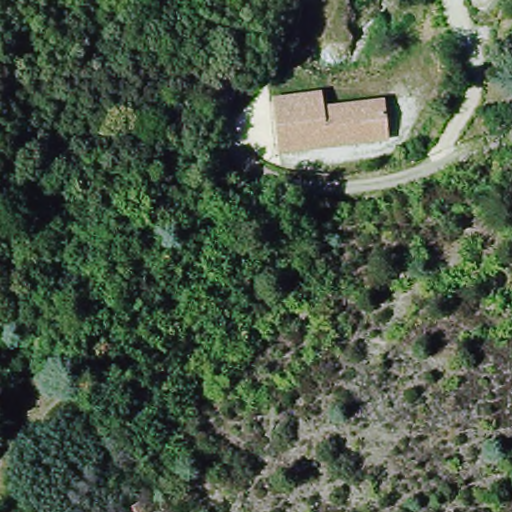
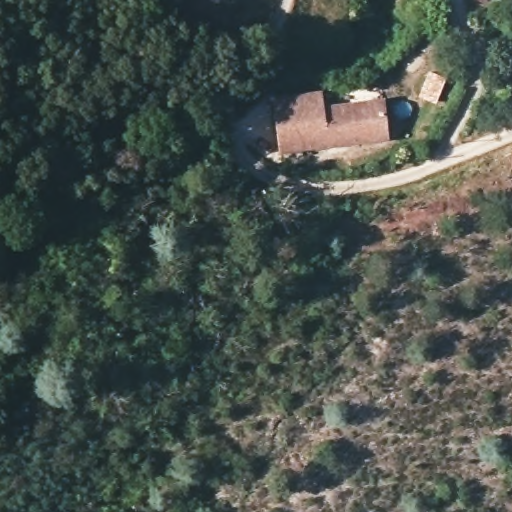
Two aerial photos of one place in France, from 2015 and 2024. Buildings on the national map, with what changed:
unchanged [(278,95),(324,91),(328,105),(386,97),(389,133),(281,142),(278,95)]
unchanged [(136,500),(139,512),(120,512),(136,500)]

